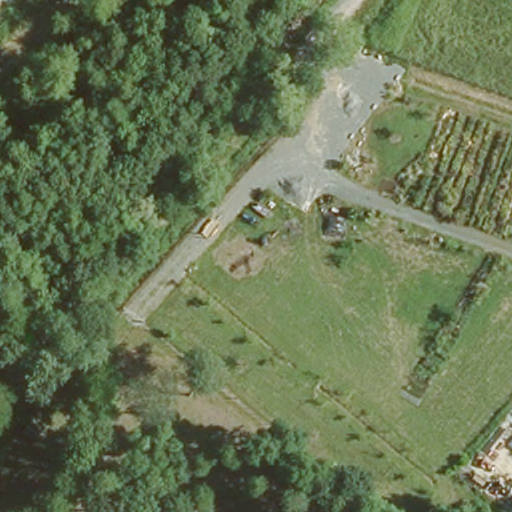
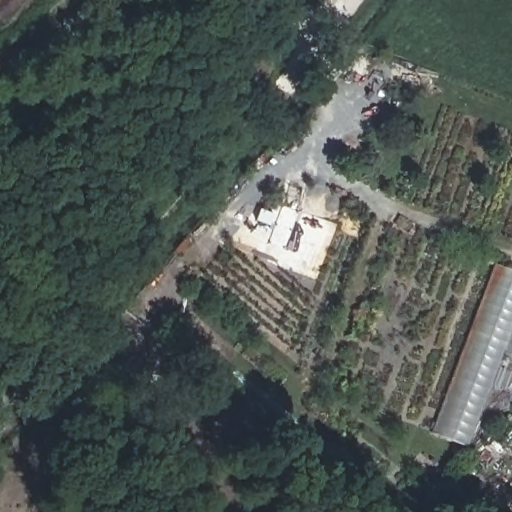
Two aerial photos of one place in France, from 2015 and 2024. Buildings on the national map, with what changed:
new [(430,435),(494,264),(512,271),(512,358),(501,353),(465,447),(430,435)]

